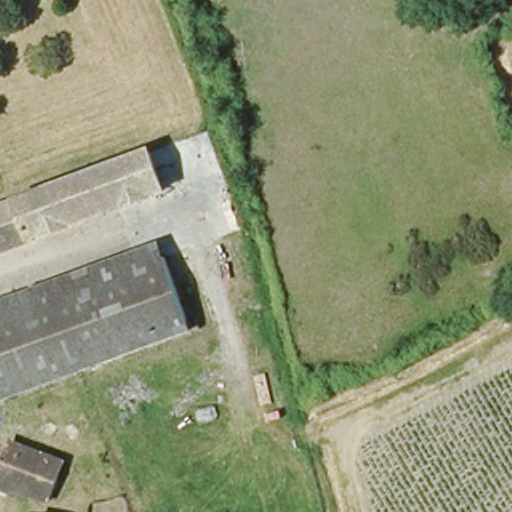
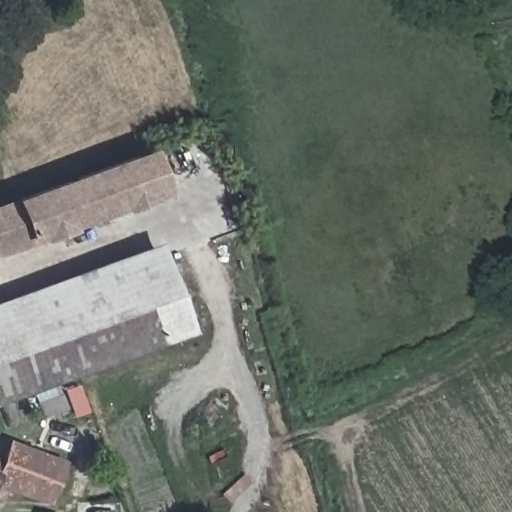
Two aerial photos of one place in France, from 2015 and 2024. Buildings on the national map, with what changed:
unchanged [(27,200),(156,153),(171,190),(40,237),(27,200)]
unchanged [(27,200),(40,237),(42,242),(1,256),(0,252),(0,209),(27,200)]
unchanged [(163,283),(0,344),(0,309),(167,251),(177,278),(163,283)]
unchanged [(195,326),(92,363),(0,396),(0,344),(163,283),(177,278),(195,326)]
unchanged [(15,485),(12,492),(1,456),(6,457),(15,437),(69,458),(53,500),(15,485)]
unchanged [(12,492),(0,487),(0,455),(1,456),(12,492)]

